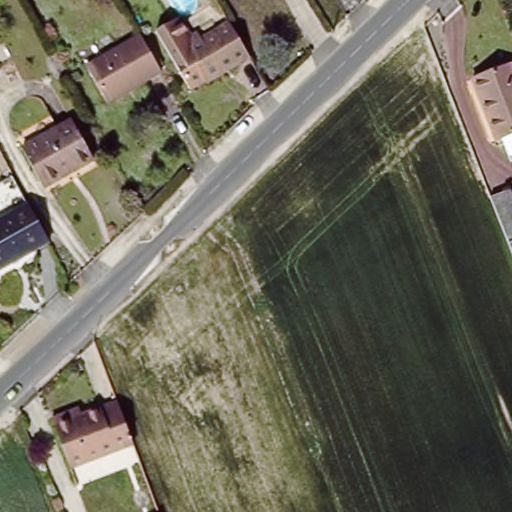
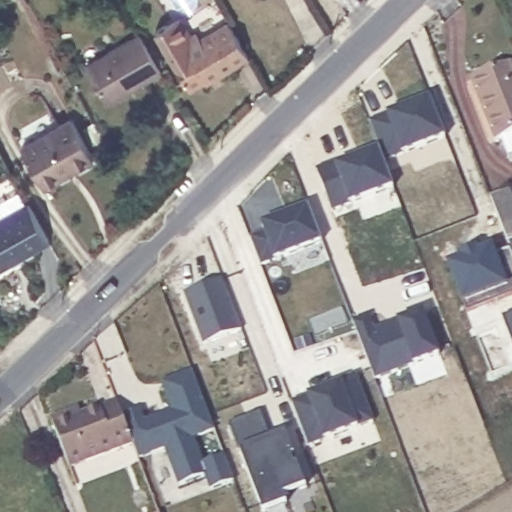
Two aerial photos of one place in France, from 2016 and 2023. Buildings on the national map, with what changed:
unchanged [(206,79),(191,87),(156,28),(166,22),(180,15),(193,36),(201,32),(203,38),(231,22),(251,56),(208,81),(206,79)]
unchanged [(110,103),(89,68),(143,35),(164,71),(110,103)]
unchanged [(507,62),(512,75),(512,156),(507,158),(497,137),(493,137),(469,77),(507,62)]
new [(403,154),(385,161),(370,122),(389,114),(431,97),(446,138),(403,154)]
unchanged [(76,172),(73,169),(44,185),(25,149),(74,122),(95,160),(76,172)]
new [(334,160),(335,163),(378,146),(393,186),(335,208),(319,166),(334,160)]
unchanged [(509,235),(492,192),(510,185),(512,190),(512,248),(508,237),(509,235)]
unchanged [(0,223),(31,205),(52,242),(0,272),(0,223)]
new [(294,274),(289,255),(274,259),(261,265),(251,237),(265,232),(262,224),(309,206),(321,242),(329,261),(294,274)]
new [(466,311),(447,263),(462,257),(460,253),(474,247),(476,252),(491,246),(493,253),(509,246),(512,253),(512,293),(466,311)]
new [(203,344),(184,294),(223,279),(242,330),(203,344)]
new [(376,380),(359,335),(423,311),(439,356),(376,380)]
new [(502,317),(512,313),(512,343),(502,317)]
new [(143,409),(146,419),(172,409),(163,382),(193,371),(215,431),(196,439),(205,462),(225,455),(234,480),(211,491),(206,475),(179,485),(166,449),(138,460),(131,441),(123,419),(121,417),(143,409)]
new [(340,384),(339,381),(356,375),(374,422),(308,448),(291,404),(340,384)]
unchanged [(131,442),(68,466),(50,424),(48,417),(76,406),(79,413),(115,400),(123,419),(131,442)]
new [(262,512),(240,451),(229,424),(260,412),(274,439),(286,434),(294,455),(290,456),(294,467),(299,465),(307,487),(284,496),(288,504),(265,512),(262,512)]
unchanged [(156,512),(147,512),(154,509),(156,512)]

